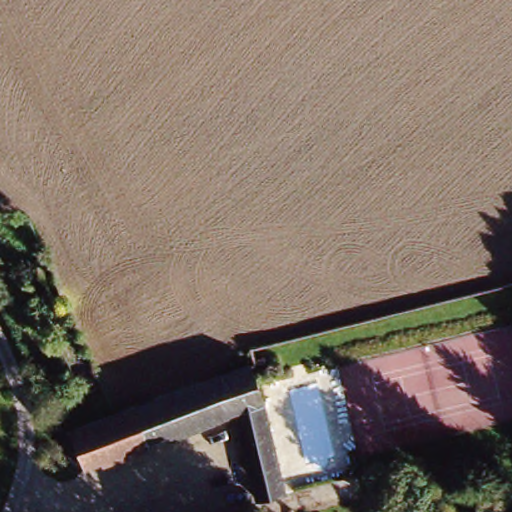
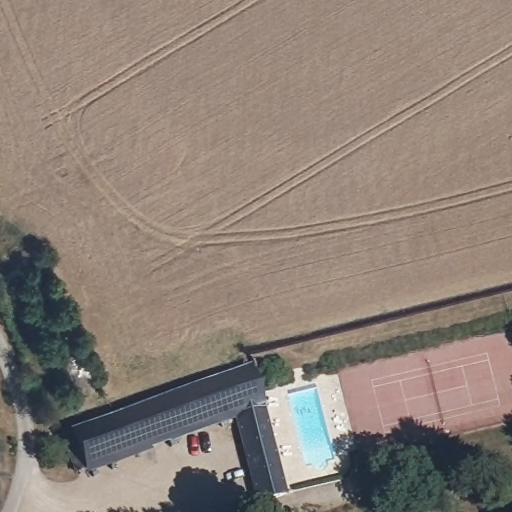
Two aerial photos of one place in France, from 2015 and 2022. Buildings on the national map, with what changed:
unchanged [(242,409),(79,462),(65,427),(259,366),(271,412),(246,419),(242,409)]
unchanged [(277,494),(265,496),(254,449),(246,419),(271,412),(282,450),(287,473),(292,489),(296,507),(280,510),(277,494)]
unchanged [(0,461),(0,450),(4,459),(0,461)]

